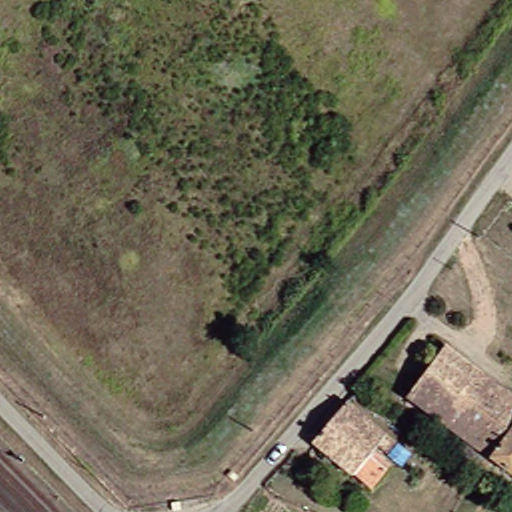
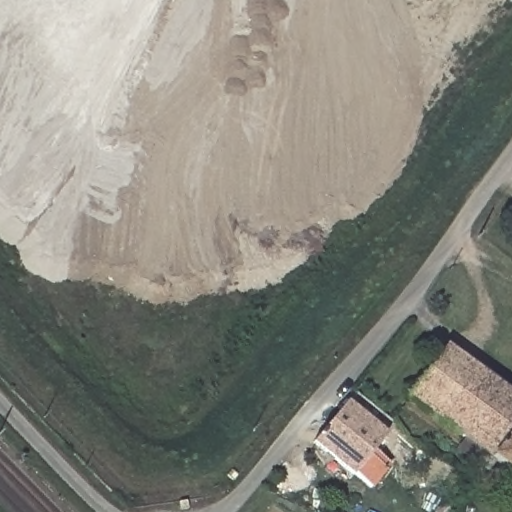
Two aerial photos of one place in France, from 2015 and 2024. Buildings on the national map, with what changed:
unchanged [(455,434),(400,394),(435,346),(512,400),(512,459),(504,469),(483,454),(476,468),(446,446),(455,434)]
unchanged [(337,402),(383,440),(372,456),(381,462),(361,487),(304,442),(337,402)]

